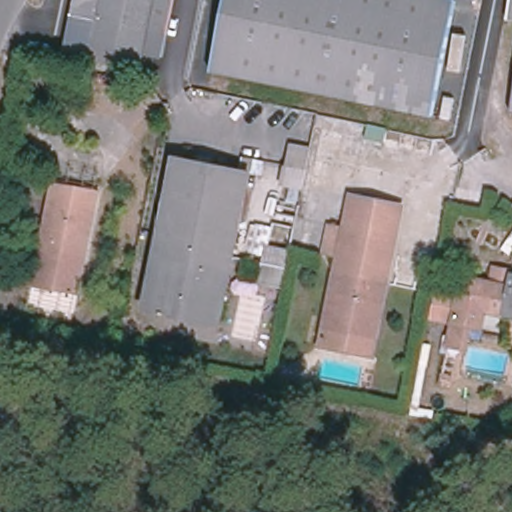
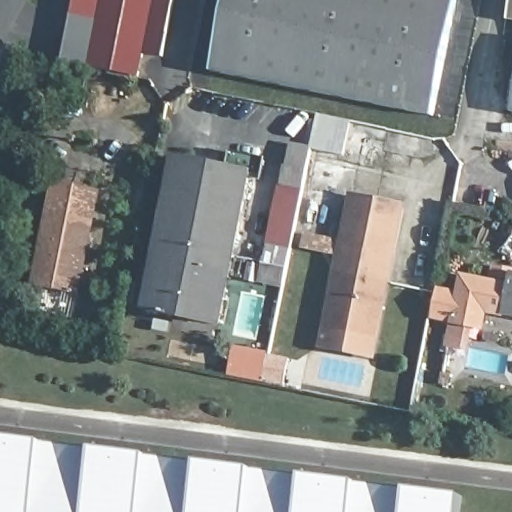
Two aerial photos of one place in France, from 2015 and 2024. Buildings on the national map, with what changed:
unchanged [(144,55),(139,77),(98,69),(94,66),(87,65),(96,19),(72,14),(75,0),(174,0),(163,59),(144,55)]
unchanged [(411,112),(396,109),(211,71),(226,0),(456,0),(433,117),(411,112)]
unchanged [(509,19),(509,15),(512,1),(512,20),(509,19)]
new [(96,19),(87,65),(64,60),(72,14),(96,19)]
unchanged [(511,112),(512,103),(512,112),(511,112)]
new [(262,262),(266,244),(290,145),(310,150),(290,249),(287,267),(262,262)]
unchanged [(225,330),(149,315),(179,162),(256,177),(225,330)]
unchanged [(79,293),(33,283),(53,183),(99,192),(79,293)]
unchanged [(373,356),(320,346),(351,195),(403,206),(373,356)]
unchanged [(448,345),(452,325),(431,320),(437,288),(457,292),(460,272),(508,282),(511,271),(512,272),(512,317),(503,315),(502,317),(488,315),(484,331),(469,328),(466,348),(448,345)]
unchanged [(83,315),(68,312),(71,296),(85,299),(83,315)]
new [(0,436),(463,495),(461,512),(0,512),(0,436)]

